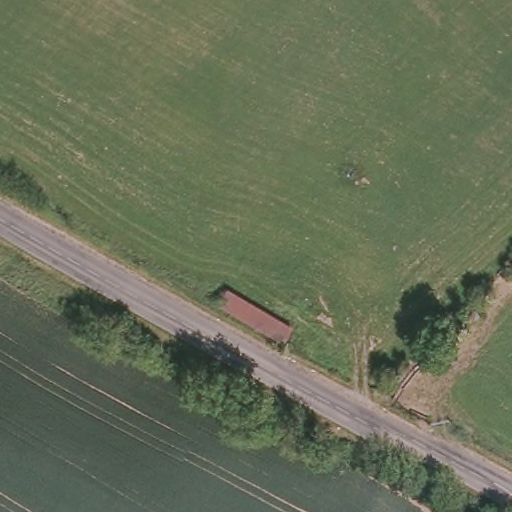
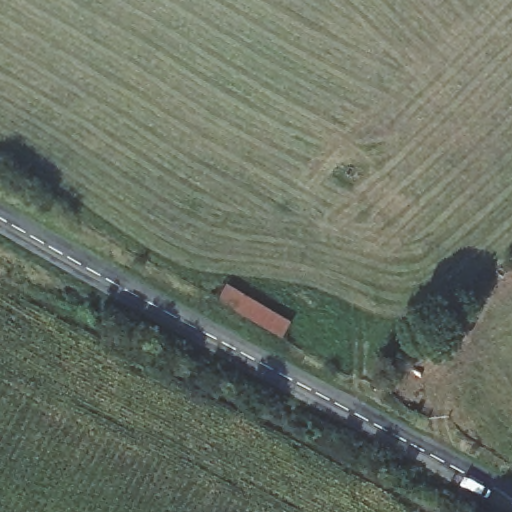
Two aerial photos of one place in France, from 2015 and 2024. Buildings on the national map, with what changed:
unchanged [(285,312),(273,331),(213,298),(226,277),(285,312)]

